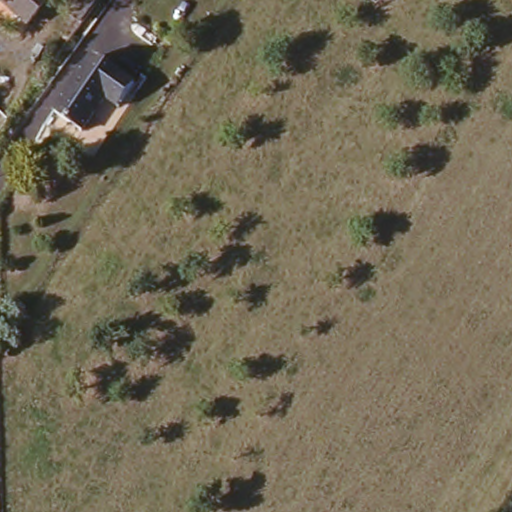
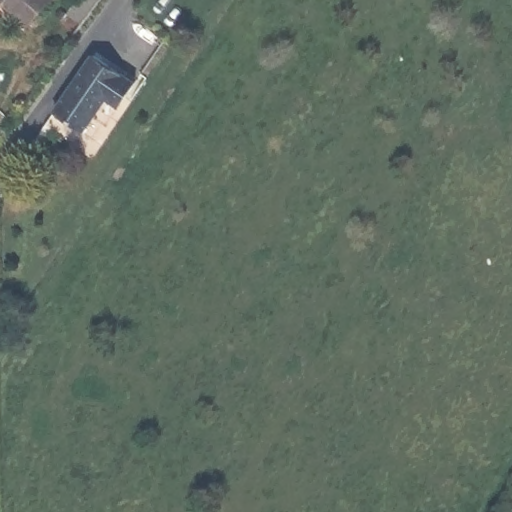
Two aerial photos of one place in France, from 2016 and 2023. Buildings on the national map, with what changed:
unchanged [(52,2),(28,25),(3,0),(55,0),(52,2)]
unchanged [(84,0),(105,0),(88,24),(75,14),(84,0)]
unchanged [(101,101),(79,133),(50,113),(90,57),(91,58),(132,86),(118,105),(114,111),(101,101)]

